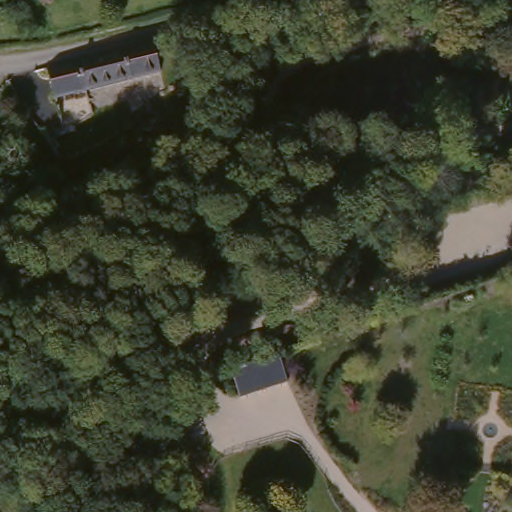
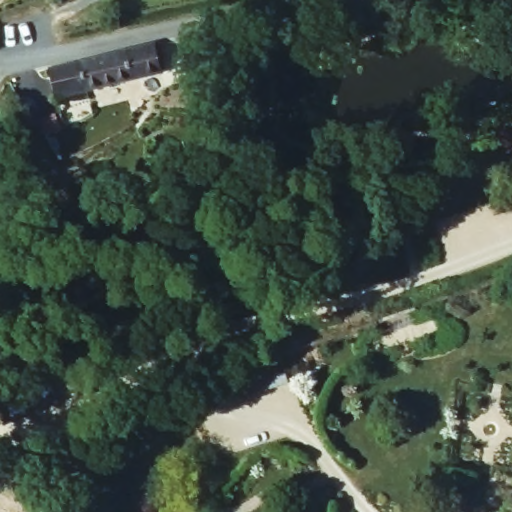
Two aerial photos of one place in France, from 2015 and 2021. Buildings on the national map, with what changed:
unchanged [(148,46),(154,45),(160,74),(57,95),(51,66),(51,65),(82,59),(129,50),(148,46)]
unchanged [(105,135),(84,145),(68,118),(102,106),(116,133),(105,135)]
unchanged [(48,195),(61,189),(71,208),(61,215),(48,195)]

